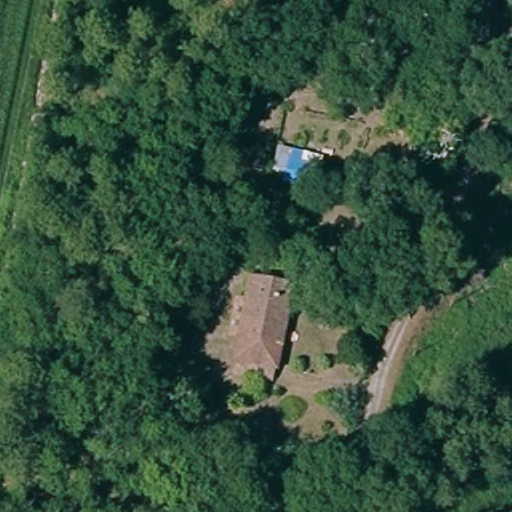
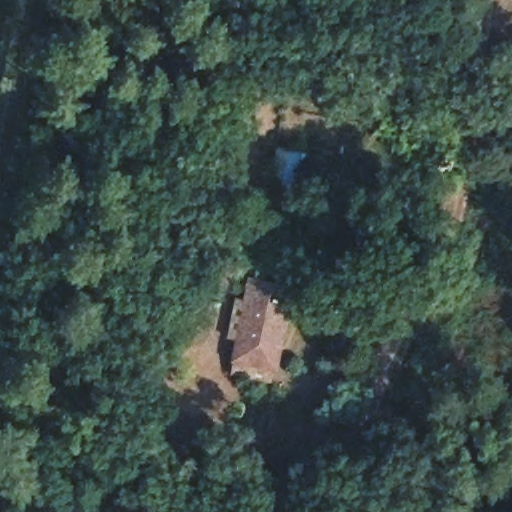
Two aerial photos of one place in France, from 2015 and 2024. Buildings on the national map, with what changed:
unchanged [(338,165),(333,189),(276,179),(278,167),(273,166),(274,154),(338,165)]
unchanged [(231,368),(245,291),(286,298),(271,377),(231,368)]

